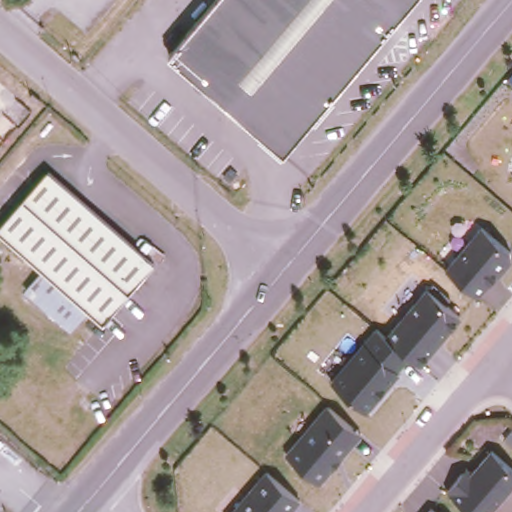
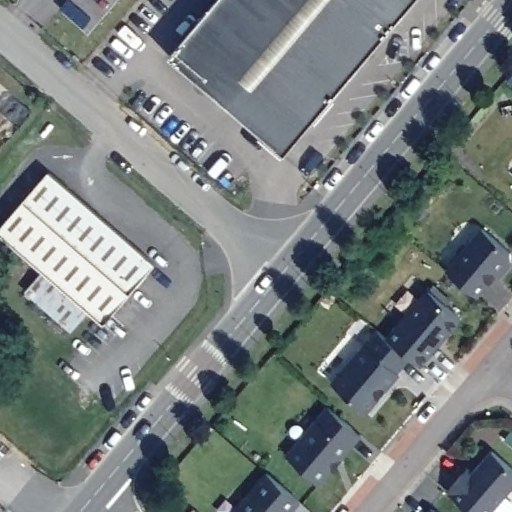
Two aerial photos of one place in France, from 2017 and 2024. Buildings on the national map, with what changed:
unchanged [(286,155),(169,56),(217,0),(417,0),(286,155)]
unchanged [(107,319),(93,307),(46,267),(0,227),(53,168),(159,259),(107,319)]
unchanged [(483,229),(510,251),(511,263),(480,296),(448,269),(483,229)]
unchanged [(93,307),(72,333),(24,292),(46,267),(93,307)]
unchanged [(464,316),(422,367),(412,359),(367,413),(329,384),(376,328),(387,336),(426,288),(464,316)]
unchanged [(364,434),(321,487),(286,457),(328,406),(364,434)]
unchanged [(512,489),(493,512),(471,512),(446,492),(464,471),(469,475),(493,449),(512,466),(512,489)]
unchanged [(291,512),(234,512),(267,471),(301,499),(291,512)]
unchanged [(427,512),(431,507),(437,512),(427,512)]

